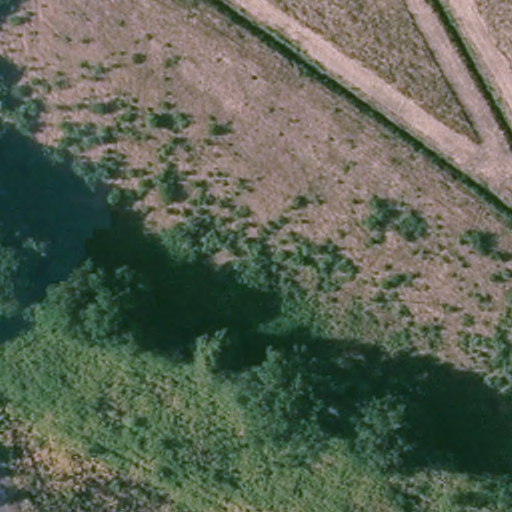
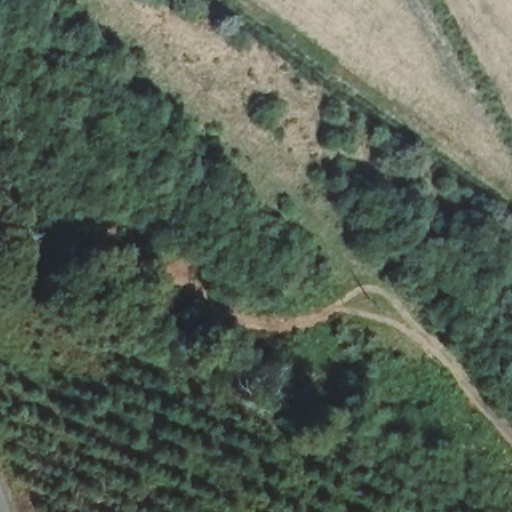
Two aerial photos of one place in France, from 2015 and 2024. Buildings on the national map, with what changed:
[]

